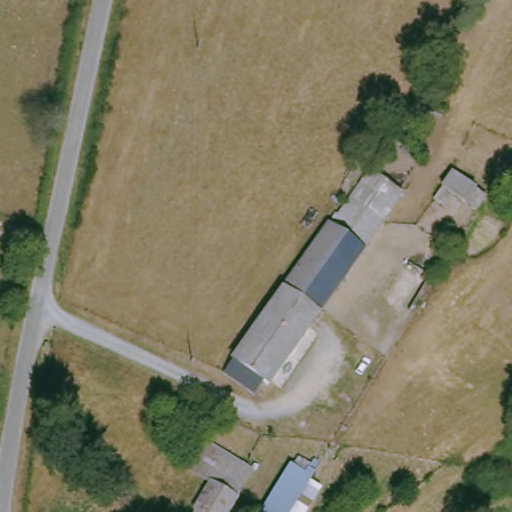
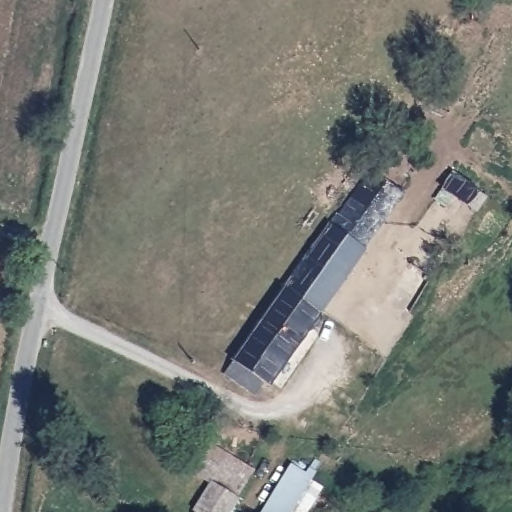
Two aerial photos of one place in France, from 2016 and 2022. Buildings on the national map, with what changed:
unchanged [(228,362),(224,358),(365,167),(403,193),(264,386),(258,382),(248,396),(218,376),(228,362)]
unchanged [(480,188),(467,203),(455,195),(445,207),(433,199),(453,171),(480,188)]
unchanged [(177,463),(197,437),(245,469),(225,496),(201,481),(177,463)]
unchanged [(272,512),(302,469),(320,481),(299,512),(272,512)]
unchanged [(179,512),(201,481),(225,496),(214,512),(179,512)]

